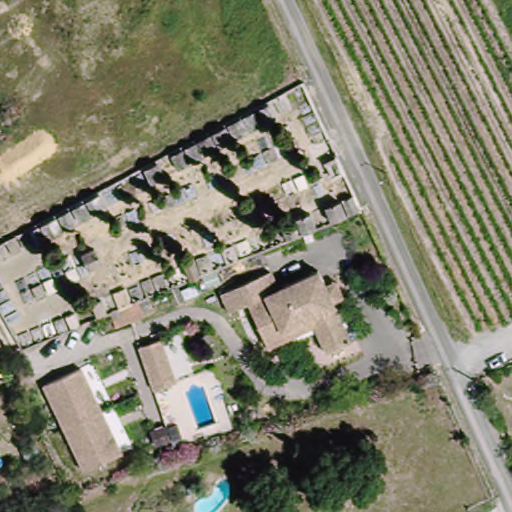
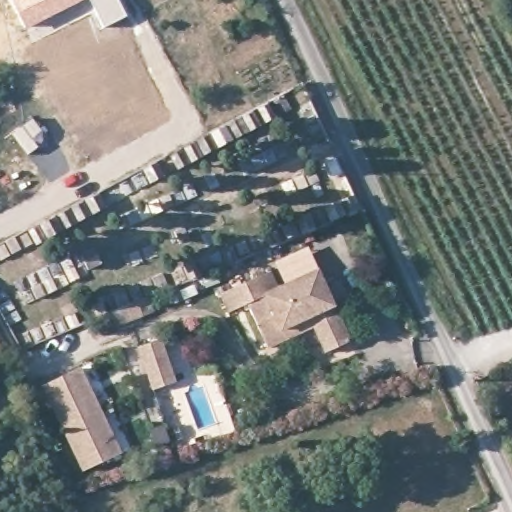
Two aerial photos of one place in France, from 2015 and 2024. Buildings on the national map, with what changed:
new [(10,0),(84,0),(26,30),(10,0)]
new [(102,28),(88,0),(118,0),(127,16),(102,28)]
unchanged [(323,353),(312,328),(265,350),(244,305),(225,313),(217,295),(266,272),(274,291),(314,271),(321,286),(332,281),(340,298),(329,303),(347,343),(323,353)]
unchanged [(153,387),(136,345),(145,341),(156,337),(174,380),(164,383),(153,387)]
unchanged [(1,365),(3,367),(4,371),(4,375),(4,378),(2,382),(0,384),(0,364),(1,365)]
unchanged [(42,389),(78,370),(100,412),(64,431),(42,389)]
unchanged [(100,412),(123,454),(86,474),(64,431),(100,412)]

